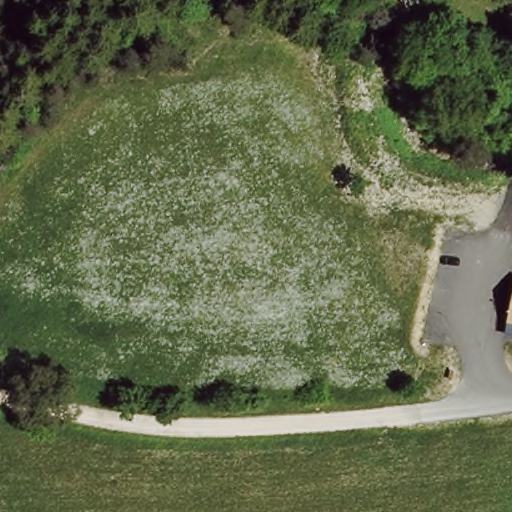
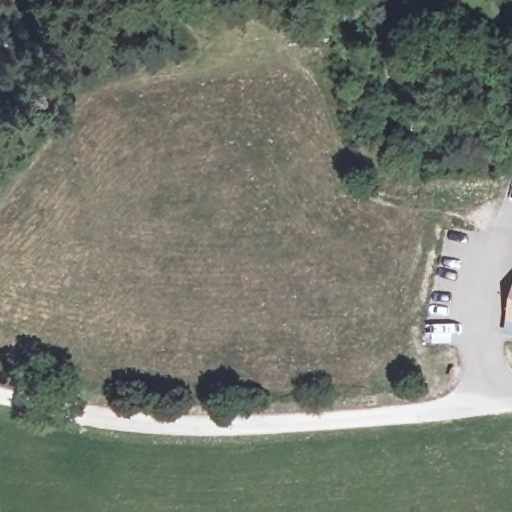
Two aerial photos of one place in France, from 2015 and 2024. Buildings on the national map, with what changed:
unchanged [(512,294),(512,335),(504,332),(512,294)]

